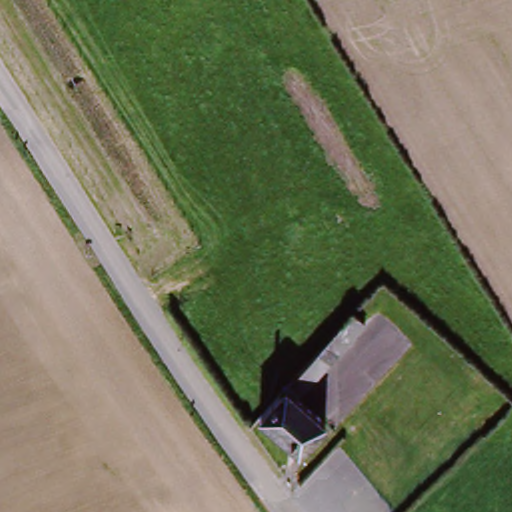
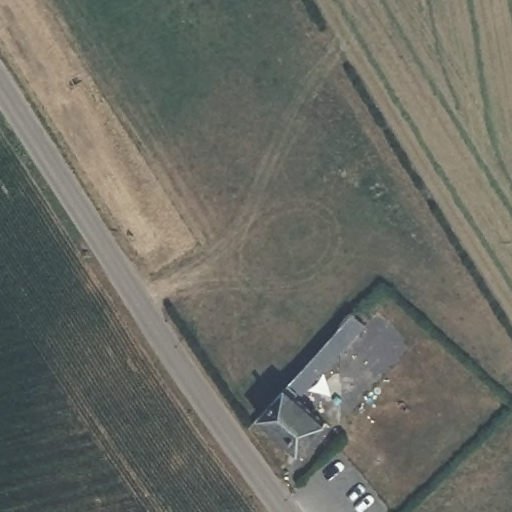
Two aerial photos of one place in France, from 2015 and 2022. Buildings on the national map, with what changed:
unchanged [(303,464),(264,424),(355,325),(367,338),(303,408),(330,435),(303,464)]

